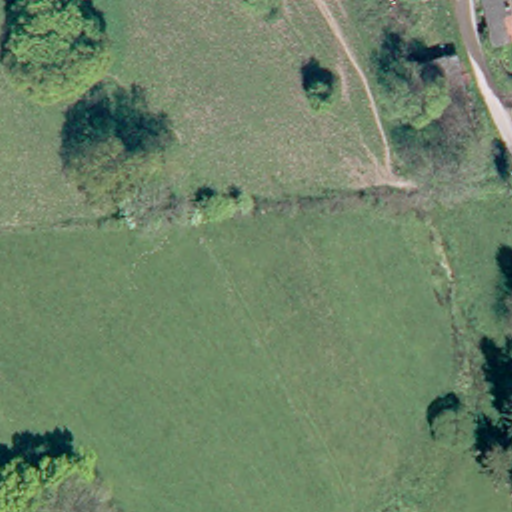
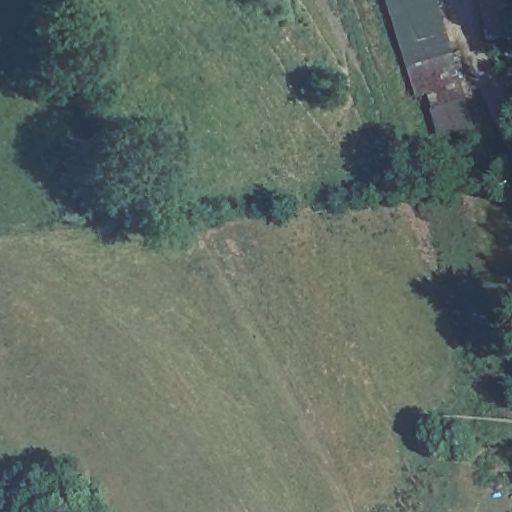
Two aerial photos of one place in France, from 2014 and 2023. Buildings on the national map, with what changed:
new [(477,126),(437,137),(430,108),(432,107),(429,94),(417,97),(386,0),(443,0),(477,126)]
unchanged [(491,36),(482,0),(512,0),(512,32),(491,36)]

